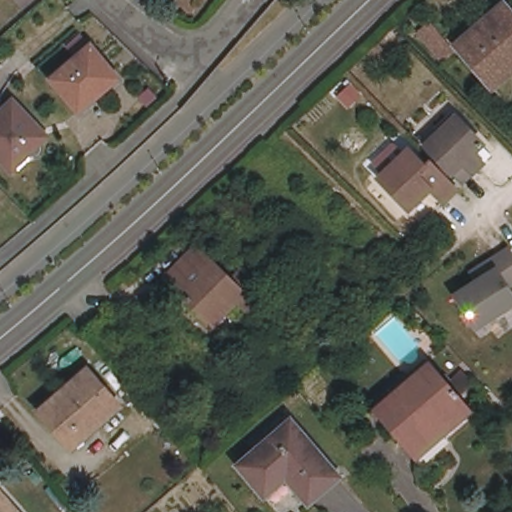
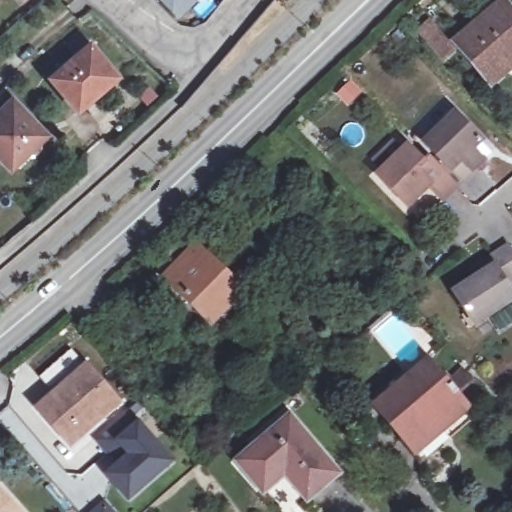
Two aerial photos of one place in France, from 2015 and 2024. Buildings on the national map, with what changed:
new [(195,0),(180,15),(165,0),(195,0)]
unchanged [(458,44),(506,4),(512,12),(512,70),(494,86),(487,79),(458,44)]
unchanged [(449,52),(443,58),(422,32),(429,26),(449,52)]
unchanged [(80,110),(52,76),(75,57),(68,48),(83,34),(91,44),(119,76),(80,110)]
unchanged [(38,125),(48,135),(40,142),(40,149),(36,152),(30,152),(12,169),(0,156),(0,112),(13,99),(38,125)]
unchanged [(474,139),(464,150),(472,158),(452,177),(417,141),(448,111),(474,139)]
unchanged [(379,169),(404,144),(418,158),(422,155),(449,182),(439,193),(424,179),(418,185),(423,189),(410,201),(379,169)]
unchanged [(218,300),(203,316),(169,283),(158,272),(166,264),(188,242),(221,275),(236,260),(259,282),(238,303),(229,312),(218,300)]
unchanged [(490,268),(484,259),(503,247),(512,261),(512,280),(503,286),(512,300),(471,327),(449,295),(490,268)]
unchanged [(86,434),(83,430),(69,441),(40,409),(56,396),(41,378),(73,350),(88,367),(120,403),(86,434)]
unchanged [(467,413),(422,452),(401,429),(395,435),(379,417),(386,411),(376,398),(422,360),(467,413)]
new [(136,402),(144,410),(136,418),(176,460),(127,505),(102,476),(123,455),(117,447),(106,455),(94,440),(136,402)]
unchanged [(337,475),(306,500),(284,475),(261,493),(235,461),(288,417),(337,475)]
unchanged [(25,512),(0,512),(0,485),(25,512)]
new [(104,508),(107,512),(100,512),(104,508)]

